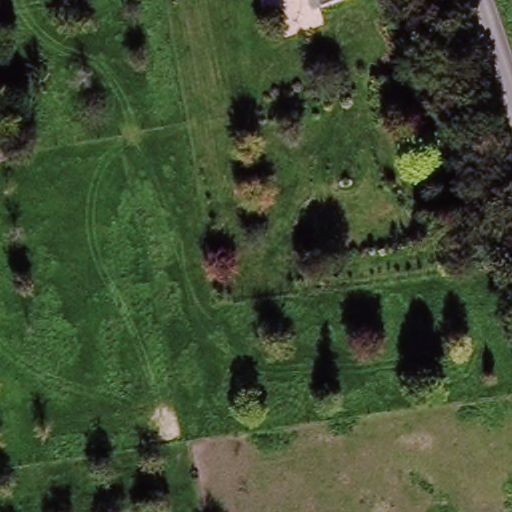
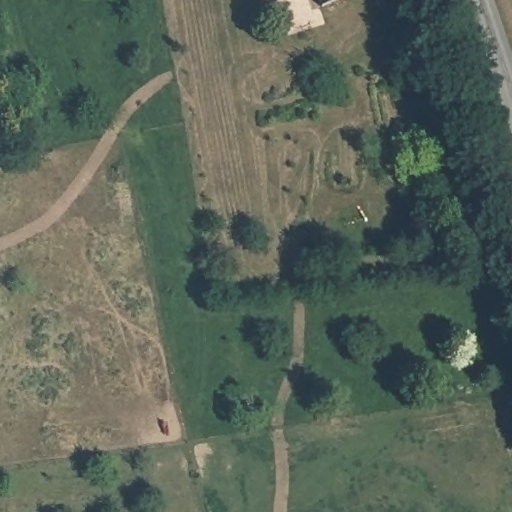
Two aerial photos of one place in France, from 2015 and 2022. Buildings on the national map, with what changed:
unchanged [(323,9),(320,0),(351,0),(323,9)]

